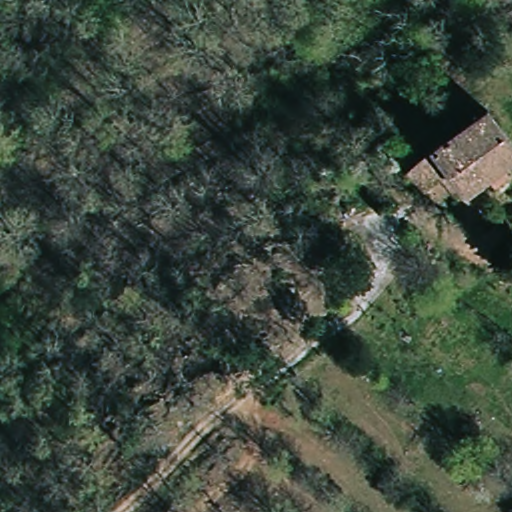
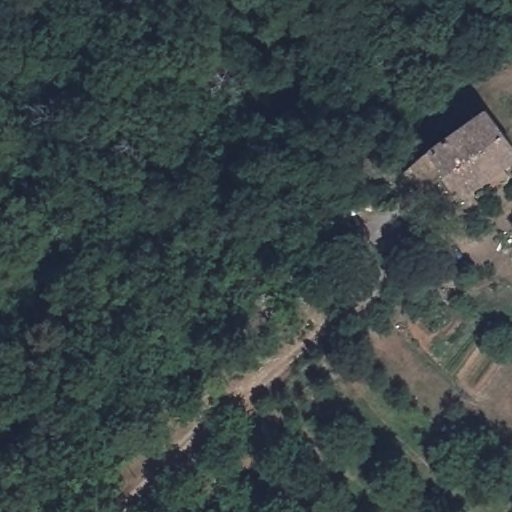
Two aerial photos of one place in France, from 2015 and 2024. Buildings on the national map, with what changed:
unchanged [(421,188),(406,167),(430,151),(457,135),(469,128),(490,115),(512,145),(512,164),(465,195),(449,175),(423,191),(421,188)]

